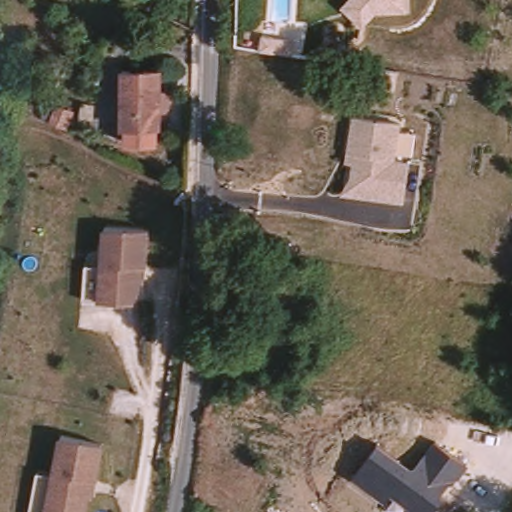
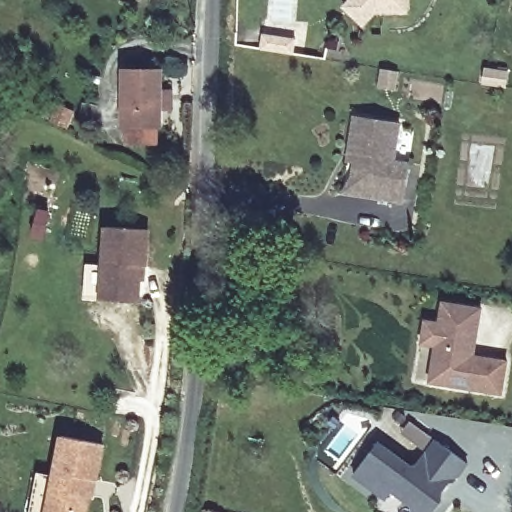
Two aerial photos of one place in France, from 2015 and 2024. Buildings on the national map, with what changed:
unchanged [(406,11),(375,12),(360,27),(341,5),(348,0),(407,0),(406,11)]
new [(262,36),(294,41),(292,56),(260,51),(262,36)]
unchanged [(162,71),(160,128),(157,128),(155,145),(126,144),(126,127),(122,127),(124,70),(162,71)]
unchanged [(49,105),(55,108),(57,105),(73,113),(65,130),(42,119),(49,105)]
unchanged [(401,120),(395,160),(410,162),(404,202),(340,192),(350,177),(352,162),(346,161),(353,112),(401,120)]
unchanged [(86,262),(102,263),(106,225),(147,229),(144,265),(140,265),(137,302),(99,298),(83,297),(86,262)]
new [(475,355),(507,360),(501,396),(427,384),(434,347),(420,345),(423,319),(437,321),(440,301),(482,307),(475,355)]
unchanged [(414,466),(435,437),(469,463),(433,512),(411,512),(410,506),(390,493),(386,499),(354,473),(379,440),(414,466)]
unchanged [(86,512),(52,512),(47,511),(54,478),(63,439),(104,447),(96,483),(93,499),(88,498),(86,512)]
unchanged [(54,478),(47,511),(52,512),(30,512),(38,474),(54,478)]

